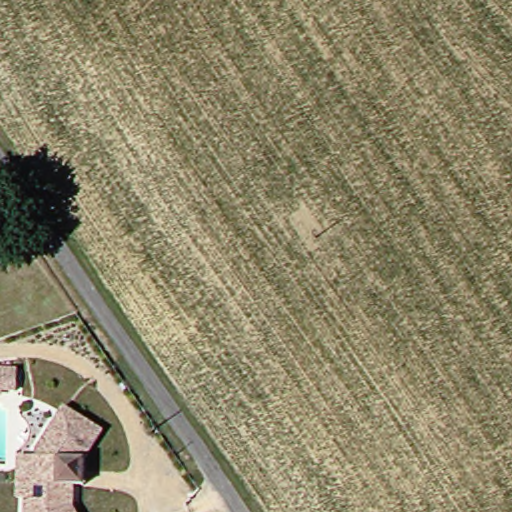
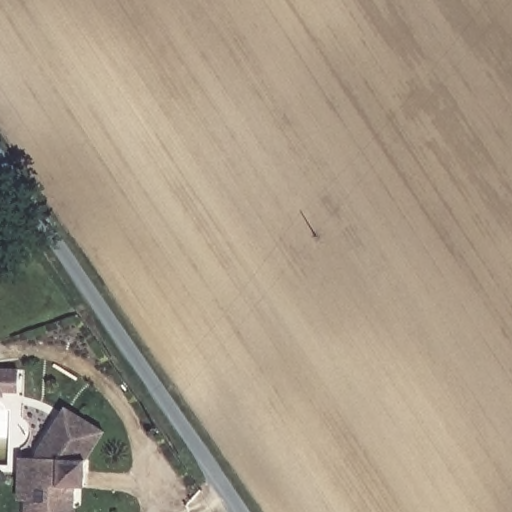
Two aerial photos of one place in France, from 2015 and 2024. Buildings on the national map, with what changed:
unchanged [(18,364),(20,387),(0,385),(0,364),(18,364)]
unchanged [(85,458),(91,488),(80,491),(87,512),(37,512),(38,494),(28,497),(20,456),(38,457),(38,447),(56,419),(66,404),(73,409),(104,431),(85,458)]

